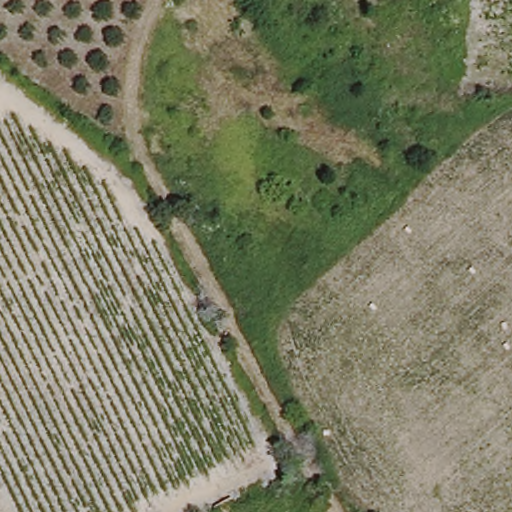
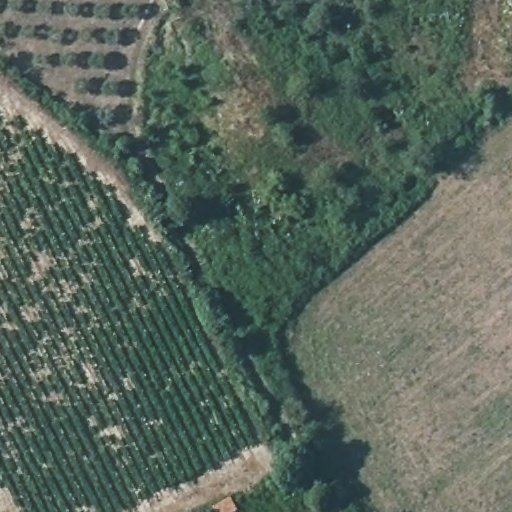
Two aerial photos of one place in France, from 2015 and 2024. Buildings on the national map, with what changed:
unchanged [(230,499),(237,511),(235,512),(213,512),(211,509),(230,499)]

